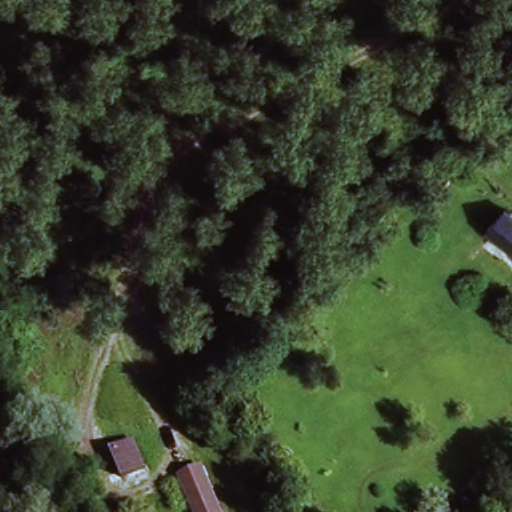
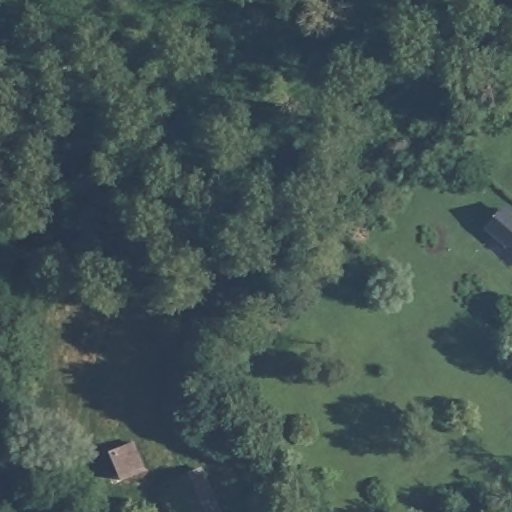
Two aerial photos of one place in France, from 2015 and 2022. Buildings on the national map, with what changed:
unchanged [(507,210),(512,214),(512,250),(490,231),(507,210)]
unchanged [(149,464),(125,476),(115,448),(140,438),(149,464)]
unchanged [(183,478),(202,469),(221,512),(198,512),(183,478)]

